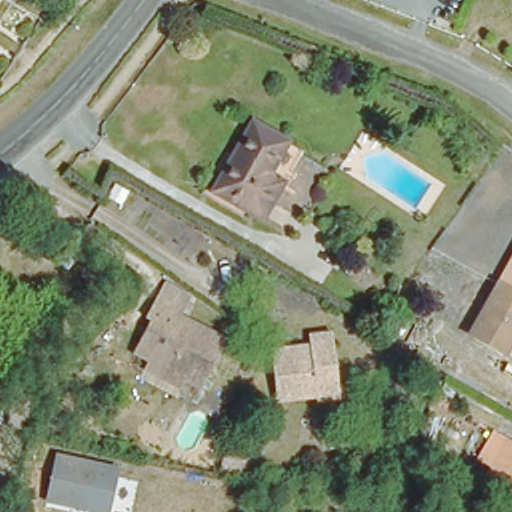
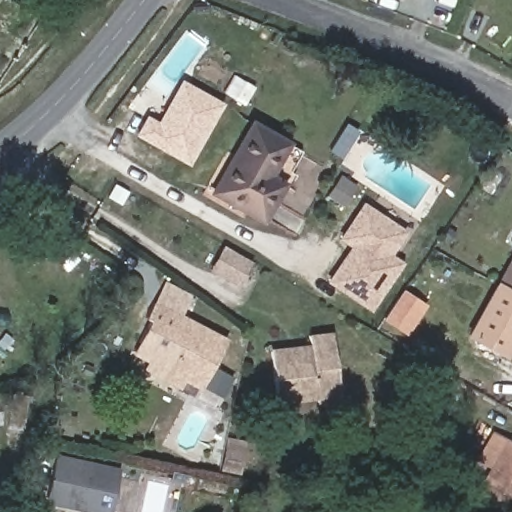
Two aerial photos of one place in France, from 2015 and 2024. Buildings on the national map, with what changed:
new [(225,104),(189,167),(134,138),(145,115),(159,121),(181,80),(225,104)]
unchanged [(235,153),(254,121),(298,147),(261,215),(220,193),(215,189),(235,153)]
new [(343,255),(349,247),(357,252),(336,239),(357,206),(397,230),(382,254),(395,262),(367,307),(326,283),(343,255)]
new [(241,284),(229,276),(216,269),(228,247),(241,254),(254,262),(241,284)]
unchanged [(491,300),(512,260),(512,345),(508,352),(473,332),(491,300)]
new [(403,333),(380,319),(398,290),(420,305),(403,333)]
unchanged [(145,372),(150,362),(136,353),(154,323),(149,320),(157,304),(228,346),(202,392),(186,382),(180,391),(145,372)]
unchanged [(272,396),(268,354),(307,349),(305,339),(327,337),(335,402),(313,404),(313,402),(273,405),(272,396)]
unchanged [(34,402),(28,433),(15,430),(21,399),(34,402)]
unchanged [(482,481),(505,441),(512,444),(512,497),(482,481)]
unchanged [(220,472),(226,443),(248,448),(242,476),(220,472)]
unchanged [(113,512),(82,512),(47,505),(57,453),(122,468),(113,512)]

